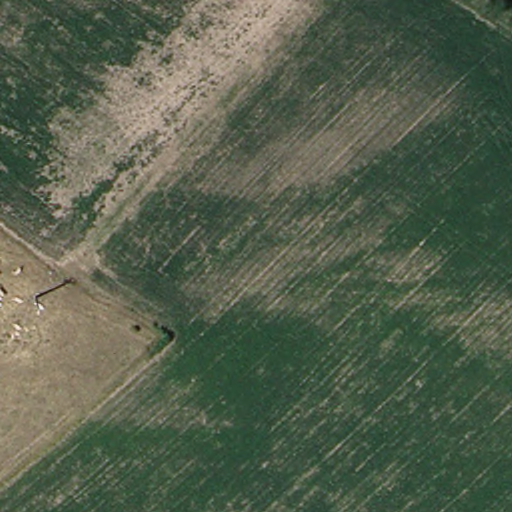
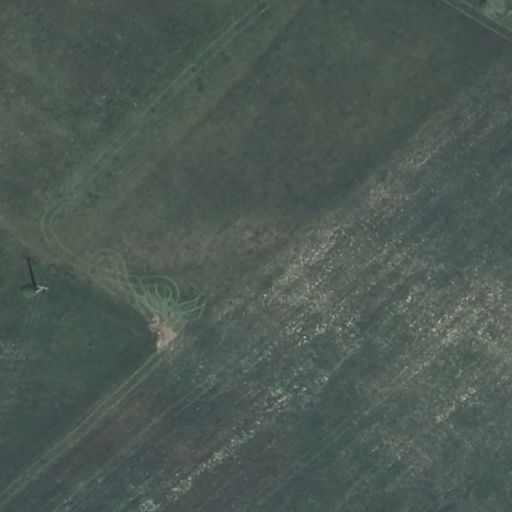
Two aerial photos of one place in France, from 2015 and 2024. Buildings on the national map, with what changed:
[]

